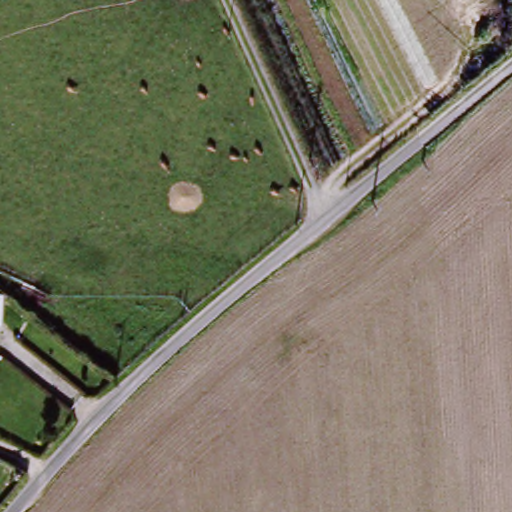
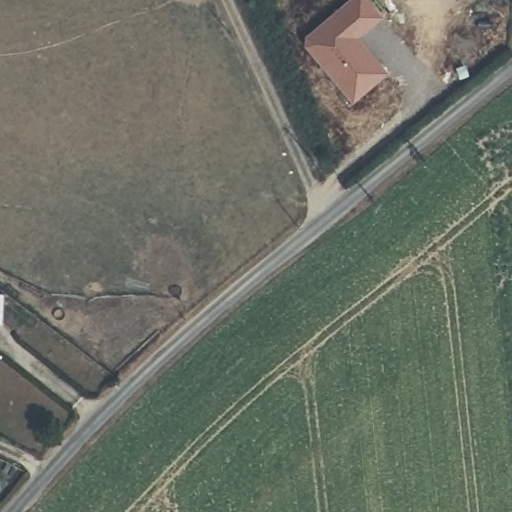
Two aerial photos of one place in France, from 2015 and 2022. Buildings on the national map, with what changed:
new [(358,37),(387,74),(353,102),(304,46),(303,35),(344,0),(371,0),(386,15),(358,37)]
unchanged [(0,323),(0,300),(1,300),(0,323)]

